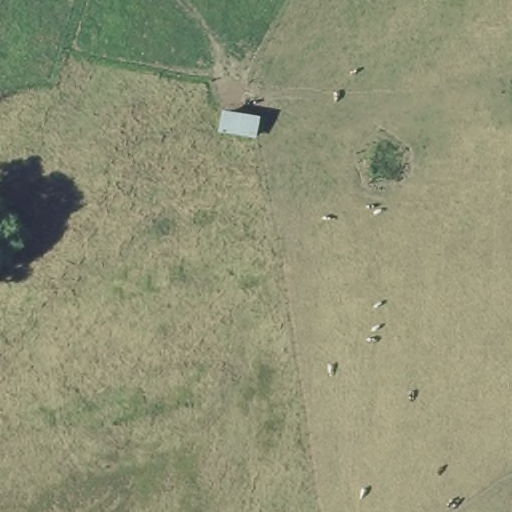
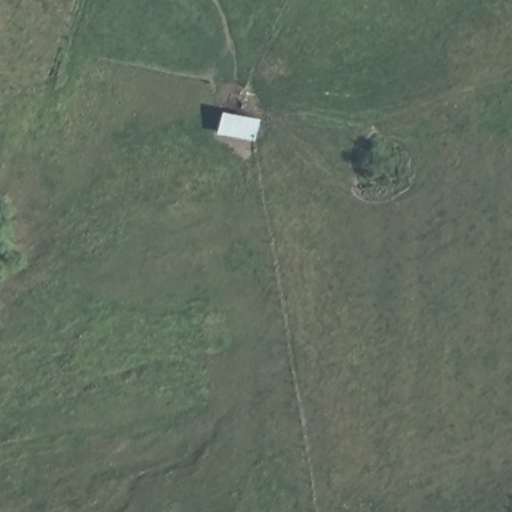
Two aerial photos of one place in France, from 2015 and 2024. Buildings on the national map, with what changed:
unchanged [(260,123),(253,150),(212,137),(218,117),(260,123)]

